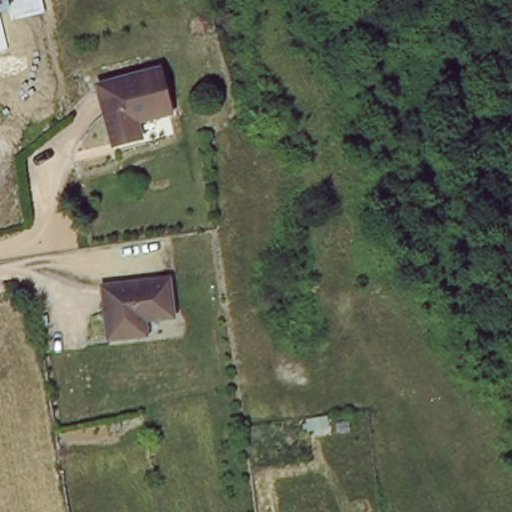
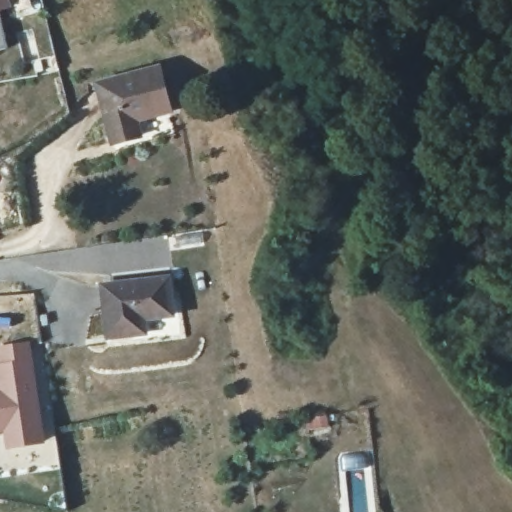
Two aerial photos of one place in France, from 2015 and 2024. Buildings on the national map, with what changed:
demolished [(5,6),(0,7),(0,0),(4,0),(5,6)]
new [(0,0),(4,0),(5,6),(0,7),(0,0)]
new [(0,23),(7,46),(0,48),(0,23)]
unchanged [(157,63),(167,101),(131,112),(136,129),(115,136),(100,80),(157,63)]
unchanged [(133,340),(108,343),(102,290),(168,280),(173,318),(145,322),(147,338),(133,340)]
new [(0,369),(0,347),(25,343),(27,361),(40,441),(6,446),(3,427),(0,428),(0,388),(2,388),(0,369)]

